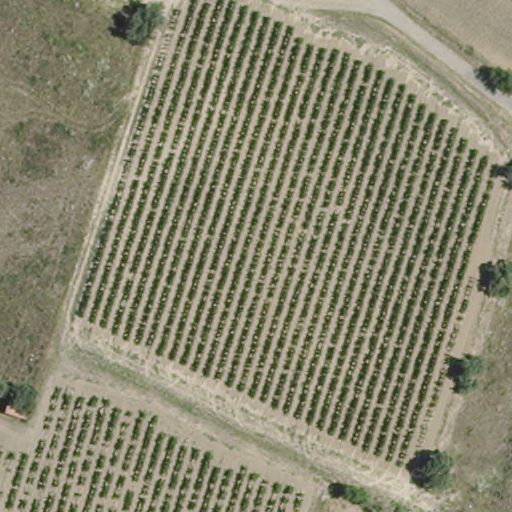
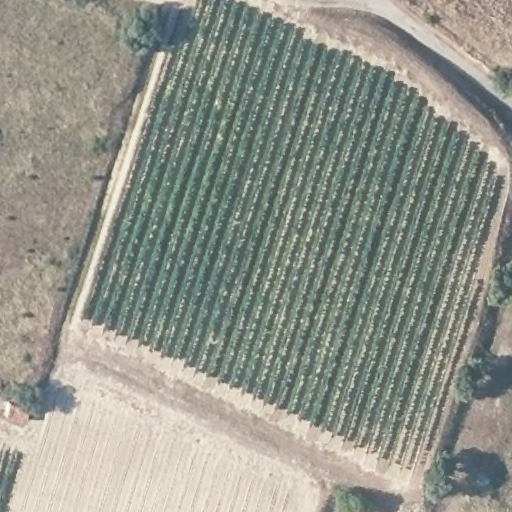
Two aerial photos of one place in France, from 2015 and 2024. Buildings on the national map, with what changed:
unchanged [(31,416),(23,431),(0,420),(0,418),(5,409),(31,416)]

